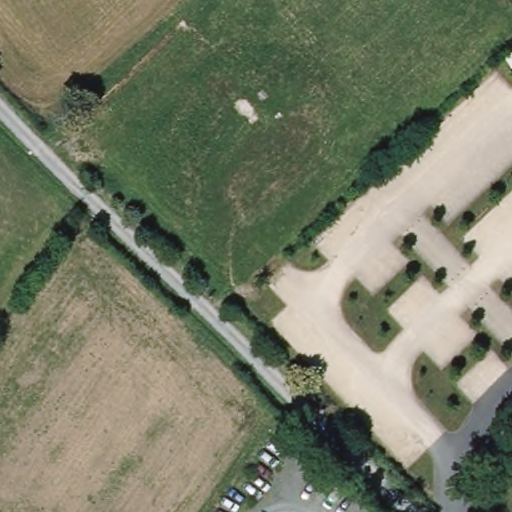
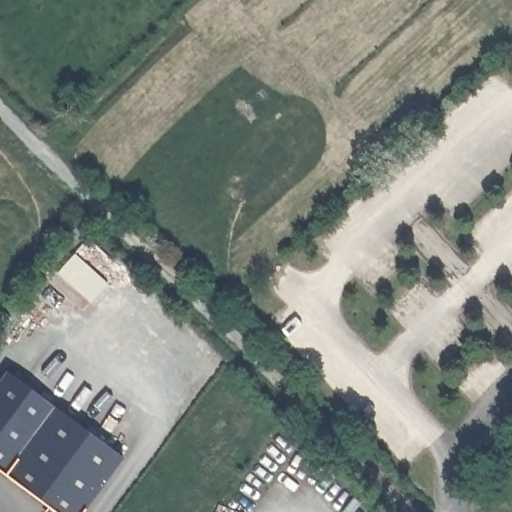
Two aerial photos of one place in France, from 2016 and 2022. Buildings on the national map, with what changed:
new [(46,512),(50,508),(0,470),(0,376),(5,370),(122,457),(81,512),(46,512)]

